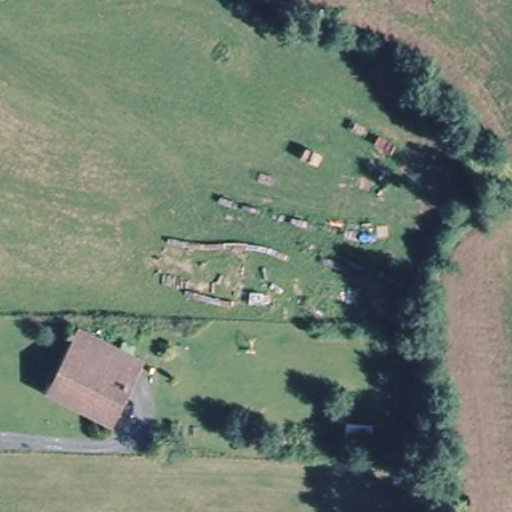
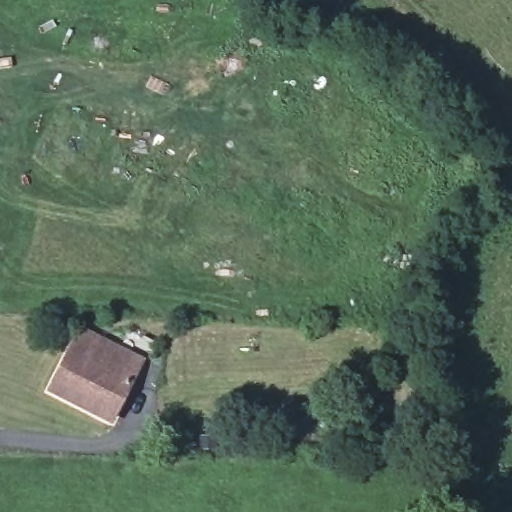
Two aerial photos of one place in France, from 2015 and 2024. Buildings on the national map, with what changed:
unchanged [(49,386),(82,332),(111,351),(137,367),(127,381),(105,420),(49,386)]

